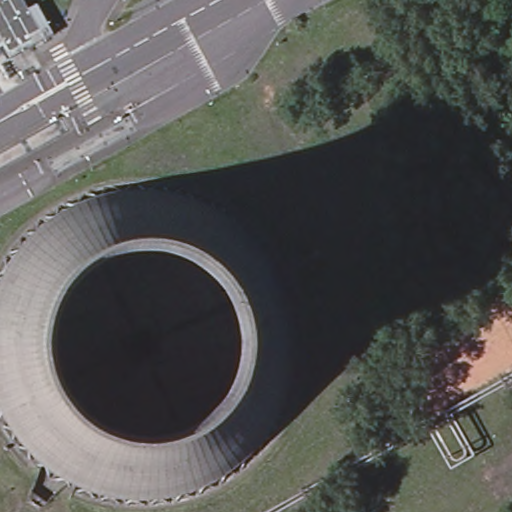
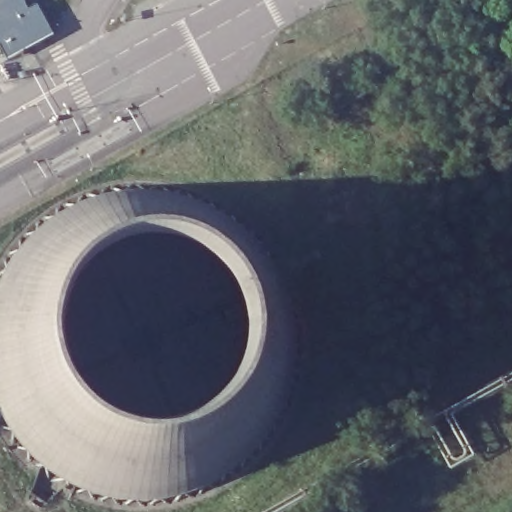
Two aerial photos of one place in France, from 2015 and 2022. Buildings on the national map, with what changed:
unchanged [(0,58),(0,0),(23,0),(41,38),(0,58)]
unchanged [(3,415),(0,403),(0,287),(1,281),(25,245),(56,219),(98,203),(143,196),(188,204),(229,224),(251,243),(281,286),(292,325),(296,367),(289,403),(271,442),(248,465),(215,487),(176,498),(128,501),(90,490),(47,467),(21,444),(3,415)]

